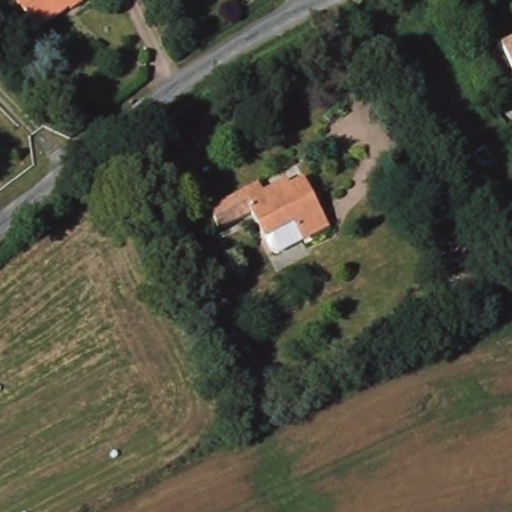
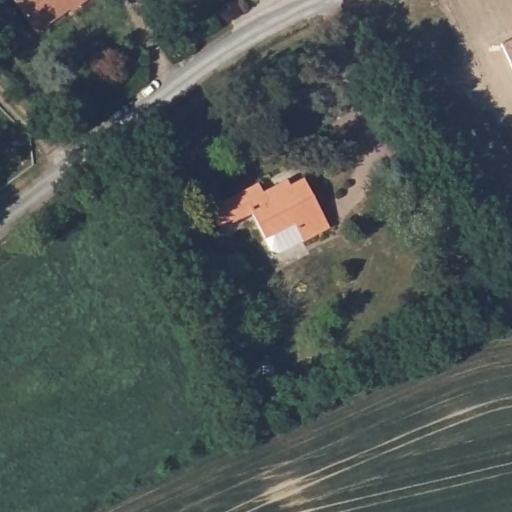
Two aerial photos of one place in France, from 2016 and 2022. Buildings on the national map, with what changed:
unchanged [(73,11),(70,7),(35,31),(14,0),(90,0),(73,11)]
unchanged [(502,44),(512,39),(512,63),(502,44)]
unchanged [(324,229),(276,253),(268,251),(248,213),(217,230),(206,210),(254,185),(259,194),(284,181),(286,186),(299,179),(324,229)]
unchanged [(452,280),(449,275),(499,251),(502,255),(512,268),(512,281),(464,304),(452,280)]

